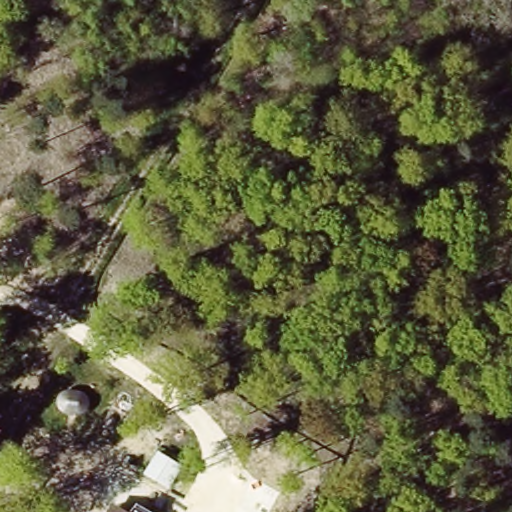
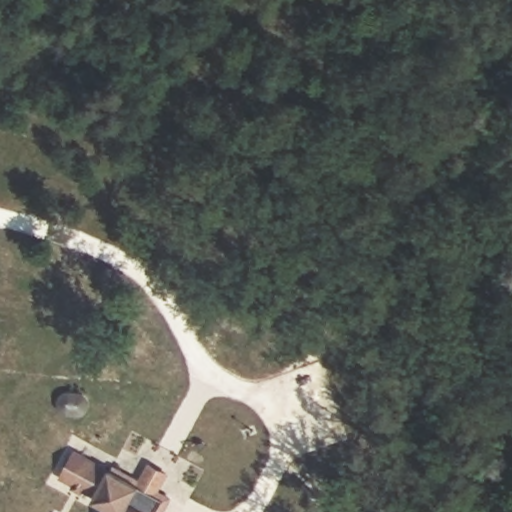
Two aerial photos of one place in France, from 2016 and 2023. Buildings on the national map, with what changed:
new [(94,500),(97,495),(62,478),(76,451),(110,467),(140,482),(150,463),(172,472),(162,491),(174,496),(167,512),(106,512),(109,507),(94,500)]
demolished [(131,512),(106,512),(110,503),(131,512)]

